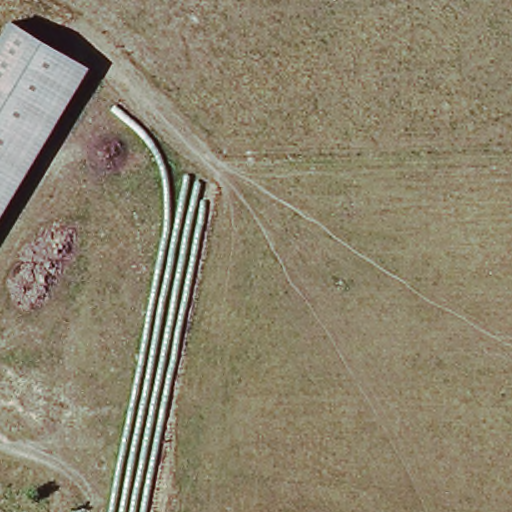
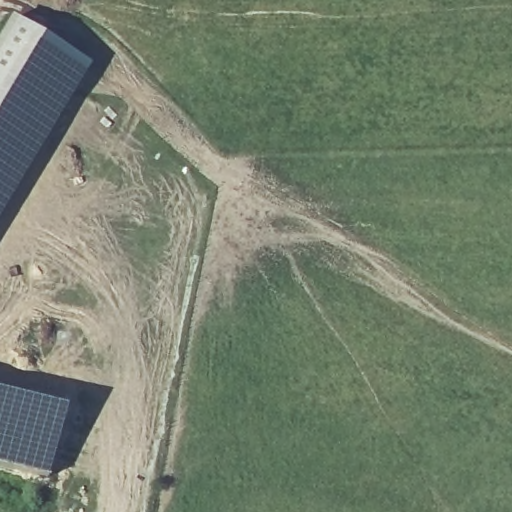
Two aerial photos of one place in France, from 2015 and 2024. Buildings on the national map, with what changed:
unchanged [(0,216),(0,39),(12,19),(92,64),(0,216)]
new [(48,480),(0,467),(0,393),(66,410),(48,480)]

